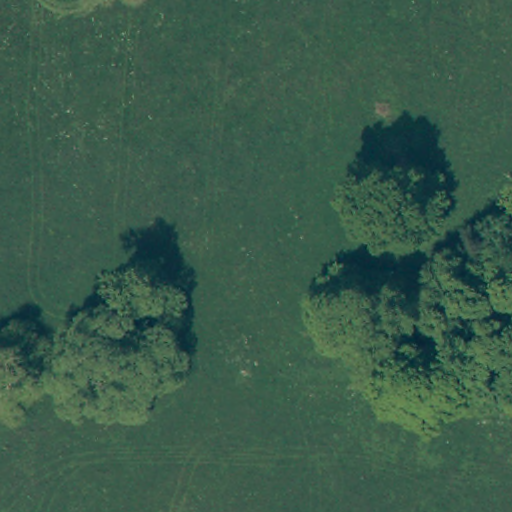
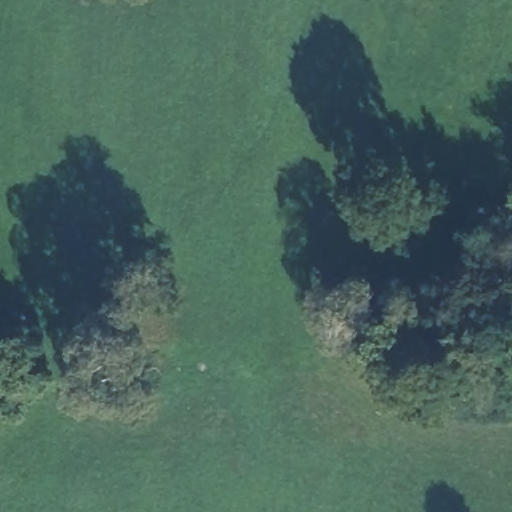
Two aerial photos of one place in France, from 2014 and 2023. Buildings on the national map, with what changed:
[]

